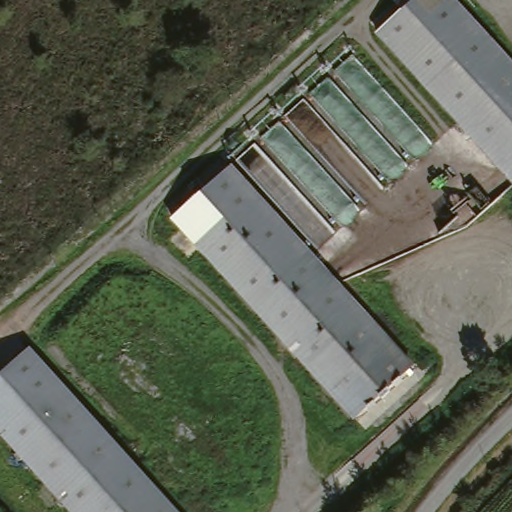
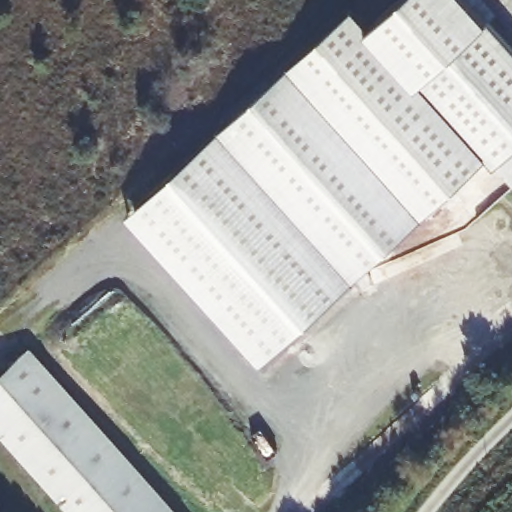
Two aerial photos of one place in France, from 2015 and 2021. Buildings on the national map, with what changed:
unchanged [(512,172),(380,27),(412,0),(469,0),(512,47),(512,172)]
new [(127,214),(352,10),(368,27),(377,19),(380,27),(492,150),(262,362),(127,214)]
demolished [(367,425),(176,212),(238,160),(427,370),(367,425)]
unchanged [(1,347),(16,363),(39,343),(195,512),(79,512),(0,424),(0,348),(1,347)]

